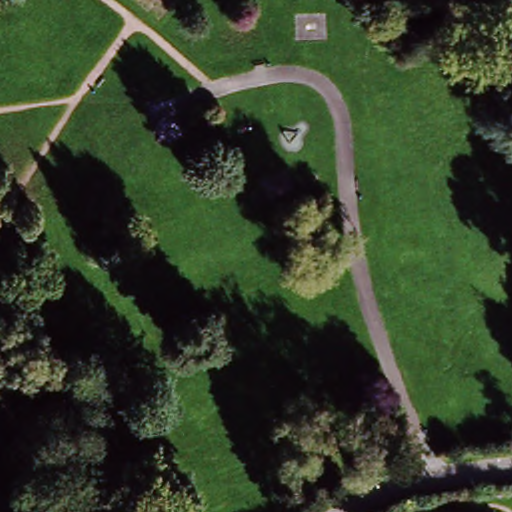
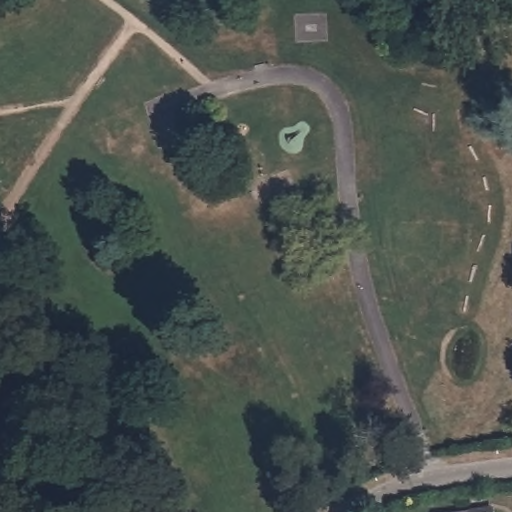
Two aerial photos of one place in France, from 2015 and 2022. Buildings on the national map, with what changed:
unchanged [(491,509),(491,512),(471,512),(491,509)]

